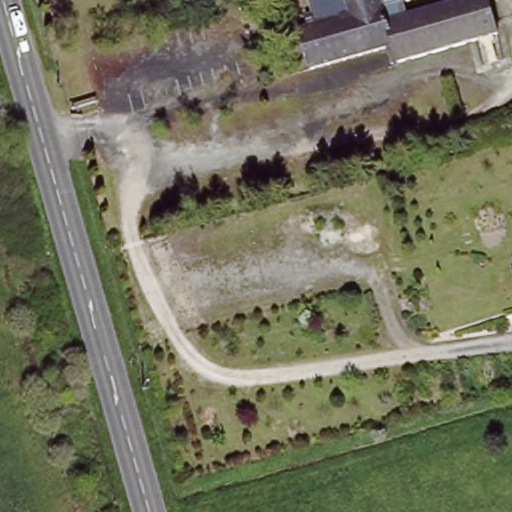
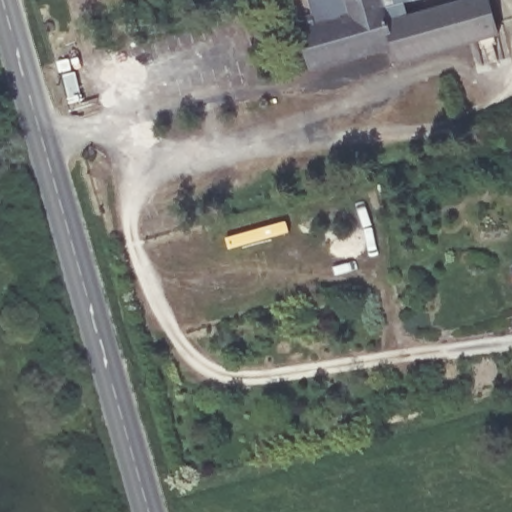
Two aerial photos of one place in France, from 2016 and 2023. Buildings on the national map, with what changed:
unchanged [(381,2),(386,16),(444,0),(489,0),(494,17),(498,30),(397,59),(392,40),(312,64),(301,26),(311,22),(309,15),(314,14),(310,0),(388,0),(381,2)]

